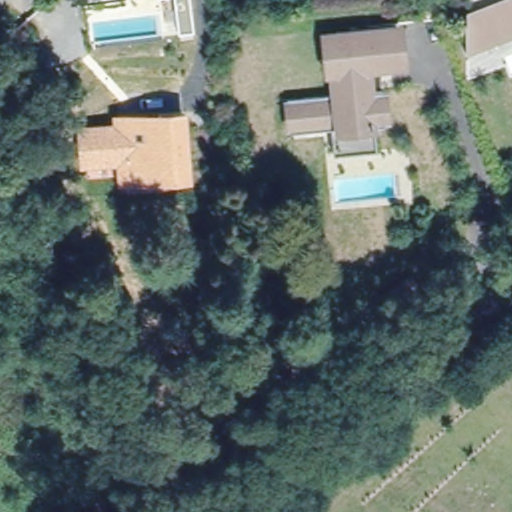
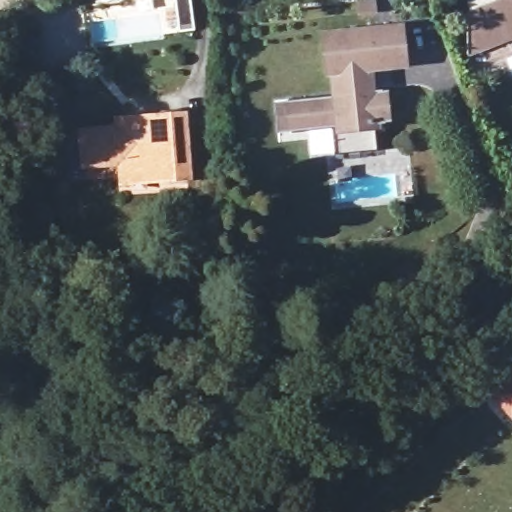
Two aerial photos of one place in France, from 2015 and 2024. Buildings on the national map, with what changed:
unchanged [(478,23),(475,14),(471,16),(466,0),(512,0),(512,38),(467,55),(464,28),(478,23)]
unchanged [(282,101),(303,99),(337,95),(335,71),(330,71),(326,38),(398,31),(402,64),(368,67),(371,92),(375,92),(378,125),(374,126),(377,152),(333,156),(330,122),(306,125),(284,127),(282,101)]
unchanged [(122,171),(121,165),(118,125),(118,121),(158,118),(158,113),(181,112),(181,116),(186,175),(162,176),(122,179),(122,171)]
unchanged [(118,125),(121,165),(80,169),(76,128),(118,125)]
unchanged [(411,280),(421,294),(397,313),(386,299),(411,280)]
unchanged [(482,391),(512,365),(512,419),(511,419),(482,391)]

